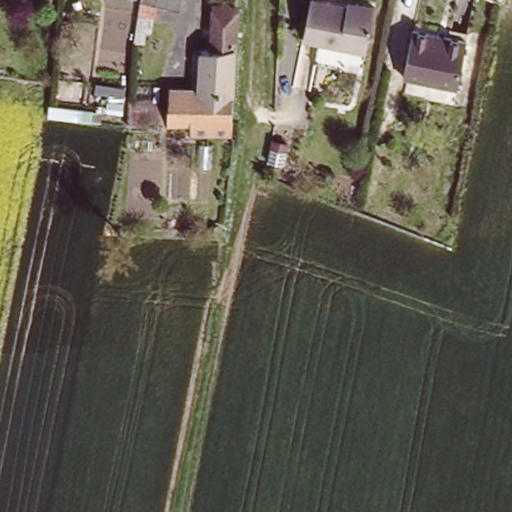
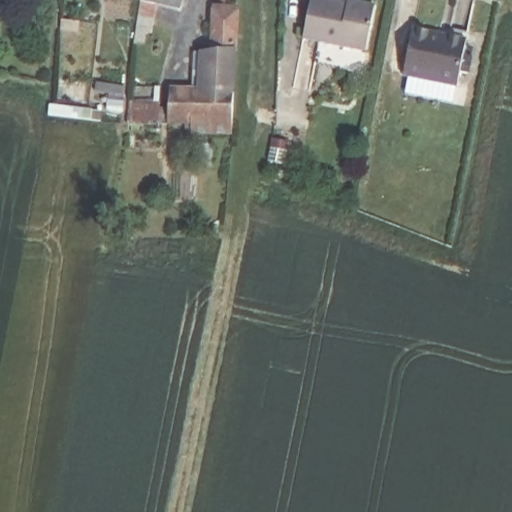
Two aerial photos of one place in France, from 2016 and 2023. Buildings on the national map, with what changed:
unchanged [(310,0),(330,0),(354,5),(355,1),(375,5),(365,51),(302,38),(310,0)]
unchanged [(157,4),(155,18),(141,15),(144,1),(157,4)]
unchanged [(168,120),(170,85),(193,84),(200,83),(203,45),(212,45),(215,18),(228,18),(228,11),(239,10),(233,119),(238,119),(236,131),(195,132),(195,120),(168,120)]
unchanged [(403,75),(413,28),(466,39),(457,86),(403,75)]
unchanged [(157,97),(156,120),(130,120),(131,97),(157,97)]
unchanged [(267,157),(271,137),(286,140),(282,160),(267,157)]

